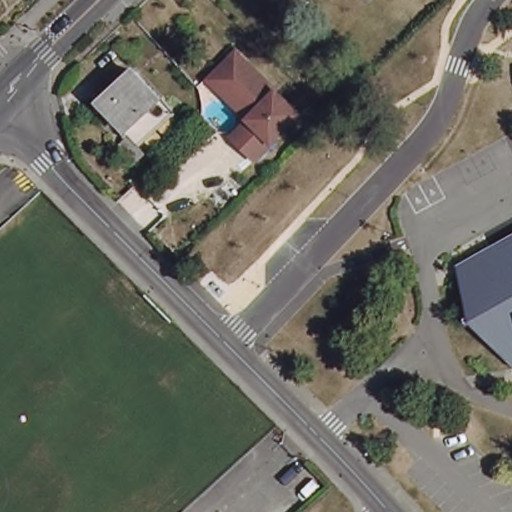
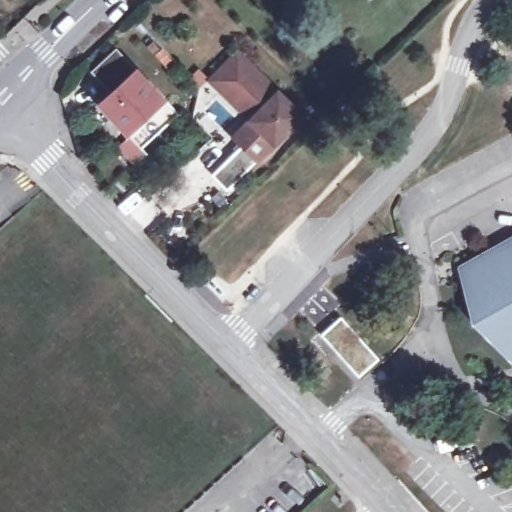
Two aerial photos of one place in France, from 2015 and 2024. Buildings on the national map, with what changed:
unchanged [(217,87),(256,126),(235,148),(227,140),(244,123),(204,83),(231,55),(241,64),(217,87)]
unchanged [(256,126),(217,87),(241,64),(295,118),(250,163),(235,148),(256,126)]
unchanged [(126,152),(110,136),(122,125),(95,96),(130,65),(167,106),(133,137),(137,141),(126,152)]
unchanged [(472,324),(457,271),(512,241),(512,365),(472,324)]
new [(341,319),(379,361),(359,379),(321,337),(341,319)]

